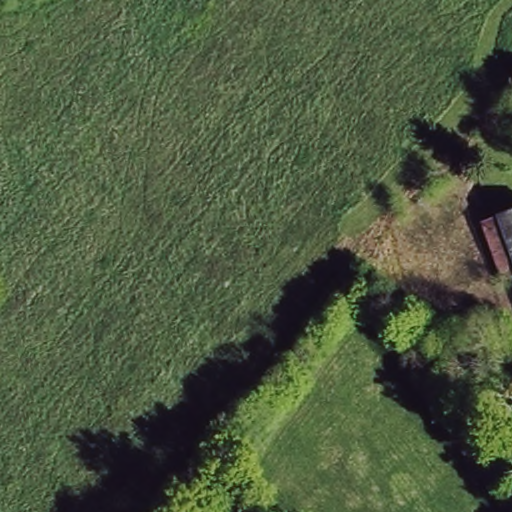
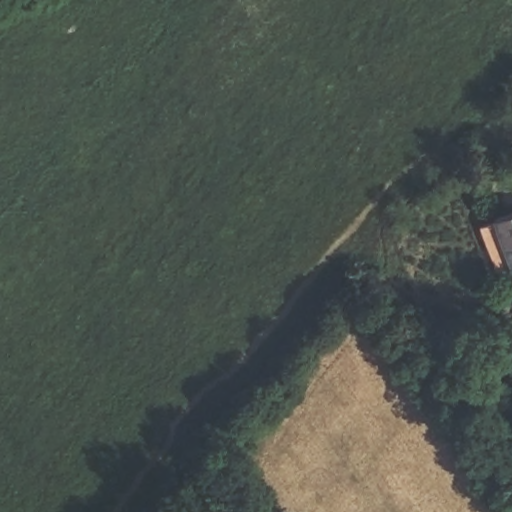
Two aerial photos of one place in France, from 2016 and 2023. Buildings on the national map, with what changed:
unchanged [(512,207),(512,277),(502,279),(482,220),(512,207)]

